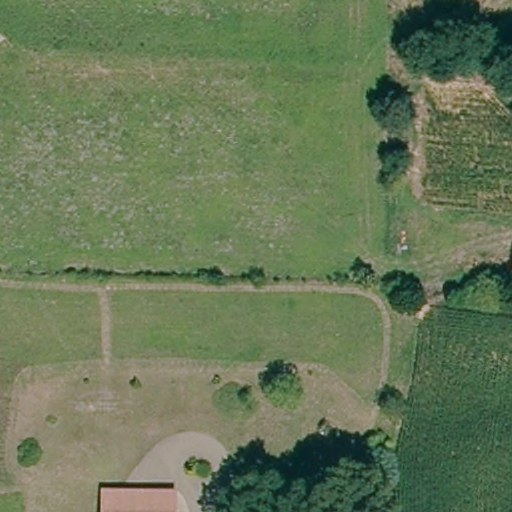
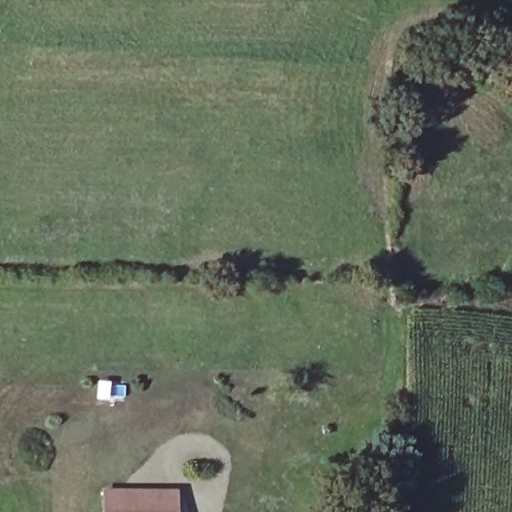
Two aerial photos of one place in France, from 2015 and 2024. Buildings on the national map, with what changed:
unchanged [(511,284),(512,279),(512,284),(511,284)]
unchanged [(103,506),(103,483),(171,483),(170,507),(103,506)]
unchanged [(170,512),(103,512),(103,510),(103,506),(170,507),(170,512)]

